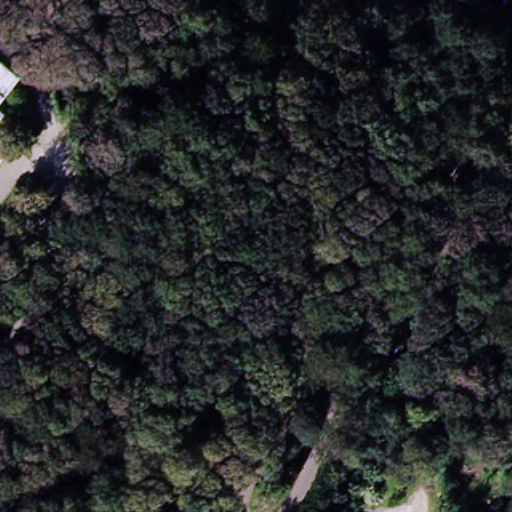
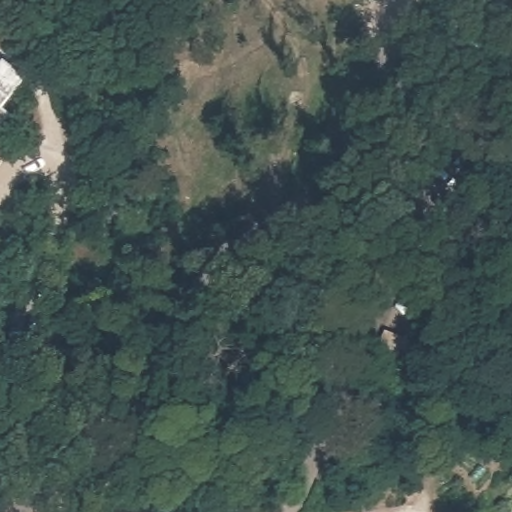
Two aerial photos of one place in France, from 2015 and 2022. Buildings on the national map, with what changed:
unchanged [(0,93),(0,64),(3,60),(26,77),(10,101),(0,93)]
unchanged [(10,101),(4,109),(12,114),(0,134),(0,93),(10,101)]

